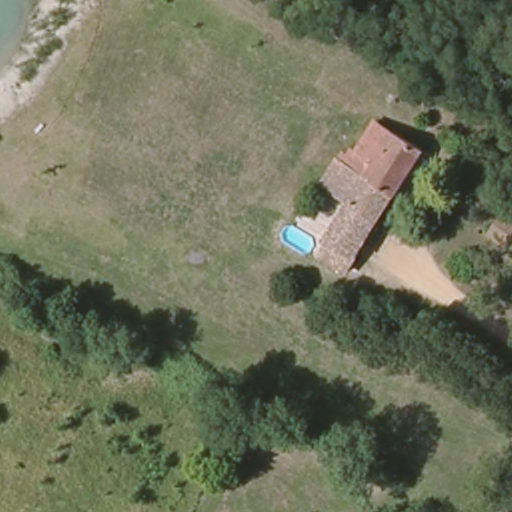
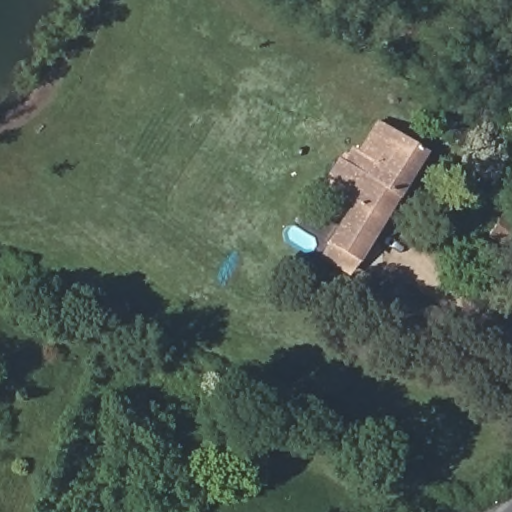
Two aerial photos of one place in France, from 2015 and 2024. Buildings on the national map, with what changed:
unchanged [(345,269),(319,253),(328,238),(306,223),(327,192),(323,186),(343,158),(350,162),(376,119),(425,149),(345,269)]
unchanged [(487,232),(509,202),(512,203),(512,237),(505,245),(487,232)]

